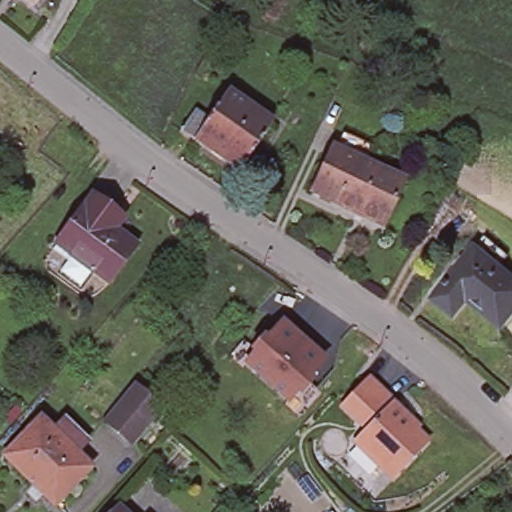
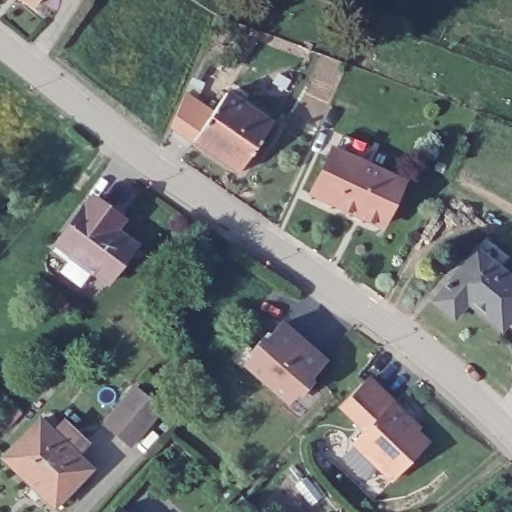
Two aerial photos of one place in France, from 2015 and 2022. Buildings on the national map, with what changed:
unchanged [(25,0),(38,0),(33,6),(25,0)]
unchanged [(239,173),(192,141),(180,133),(193,112),(207,121),(225,93),(272,125),(239,173)]
unchanged [(343,135),(371,148),(365,163),(402,180),(381,226),(312,194),(332,148),(337,150),(343,135)]
unchanged [(65,267),(72,257),(57,246),(62,240),(60,239),(92,196),(124,219),(119,225),(140,241),(112,278),(97,266),(85,282),(65,267)]
unchanged [(467,306),(453,323),(433,307),(475,255),(485,243),(508,262),(499,274),(512,285),(512,321),(501,335),(467,306)]
unchanged [(245,365),(255,354),(252,351),(260,341),(264,344),(281,324),(323,361),(305,381),(309,384),(300,394),(297,391),(287,402),(245,365)]
unchanged [(417,429),(414,433),(427,445),(392,481),(353,443),(365,431),(340,407),(367,380),(392,405),(417,429)]
unchanged [(159,410),(130,445),(104,424),(134,388),(159,410)]
unchanged [(64,426),(74,437),(85,448),(75,460),(90,474),(54,512),(2,463),(39,424),(52,438),(64,426)]
unchanged [(118,511),(120,512),(117,512),(118,511)]

